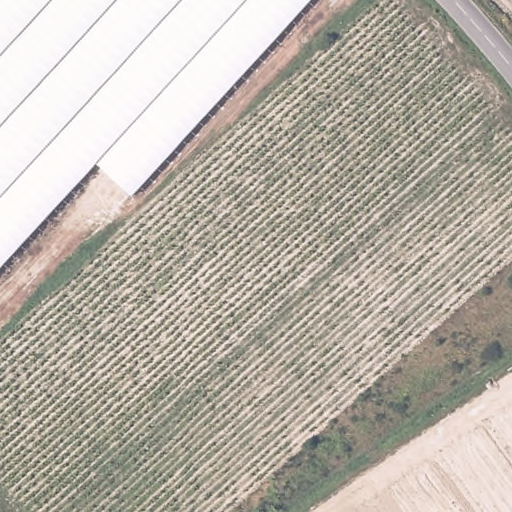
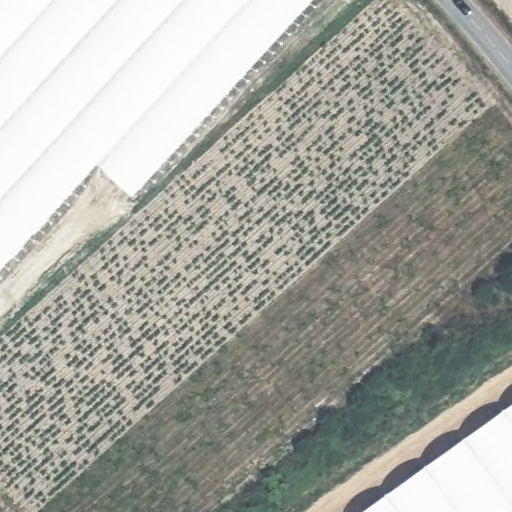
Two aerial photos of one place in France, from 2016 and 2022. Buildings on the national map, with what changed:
unchanged [(99,163),(0,270),(0,0),(313,0),(132,197),(99,163)]
new [(512,402),(512,512),(360,512),(512,402)]

